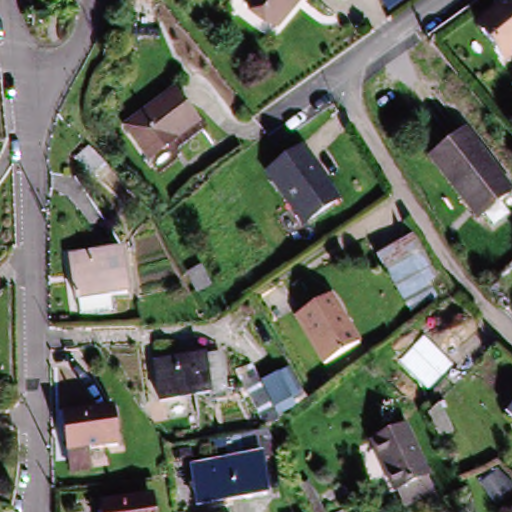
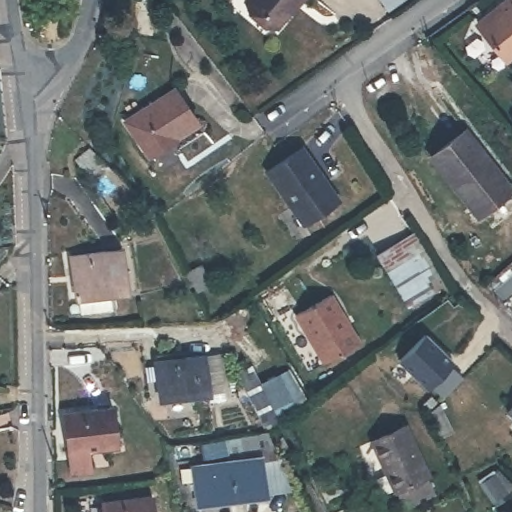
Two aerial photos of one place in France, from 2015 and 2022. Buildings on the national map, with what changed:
unchanged [(245,4),(248,0),(284,0),(296,10),(276,32),(245,4)]
unchanged [(284,0),(305,0),(296,10),(284,0)]
unchanged [(486,41),(512,17),(512,67),(510,69),(486,41)]
unchanged [(149,158),(128,122),(176,93),(197,128),(149,158)]
unchanged [(470,140),(510,190),(479,215),(440,165),(470,140)]
unchanged [(328,206),(293,229),(260,175),(295,153),(328,206)]
unchanged [(441,282),(416,297),(390,254),(414,239),(441,282)]
unchanged [(74,292),(70,258),(123,252),(127,286),(74,292)]
unchanged [(320,365),(292,318),(326,297),(354,344),(320,365)]
new [(423,331),(451,361),(448,364),(459,376),(440,394),(429,383),(426,386),(397,356),(423,331)]
unchanged [(239,366),(253,358),(278,400),(260,409),(239,366)]
unchanged [(152,367),(196,363),(209,361),(212,396),(199,397),(156,402),(152,367)]
unchanged [(66,453),(62,418),(108,412),(112,447),(86,450),(88,473),(68,475),(66,453)]
unchanged [(392,501),(390,502),(366,446),(405,429),(428,485),(422,487),(428,502),(405,512),(397,512),(392,501)]
unchanged [(304,505),(284,469),(301,460),(319,497),(304,505)]
unchanged [(186,469),(258,461),(261,496),(189,504),(186,469)]
unchanged [(110,505),(154,501),(155,512),(111,512),(110,505)]

